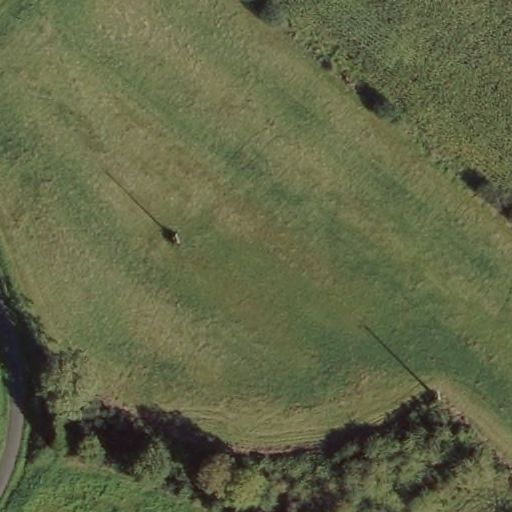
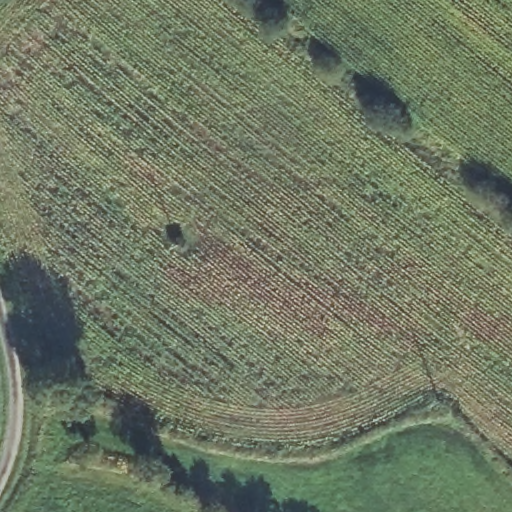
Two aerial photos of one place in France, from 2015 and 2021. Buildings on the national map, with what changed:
unchanged [(259,508),(264,512),(257,512),(259,508)]

